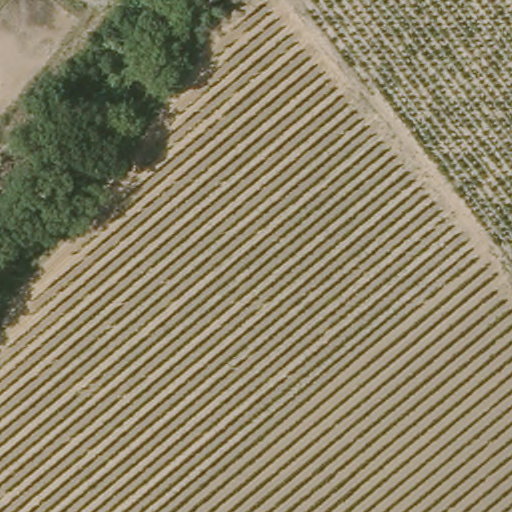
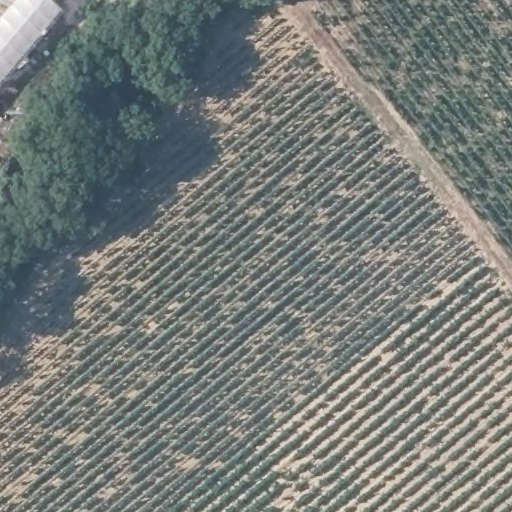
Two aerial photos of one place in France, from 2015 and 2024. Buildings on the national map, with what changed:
new [(0,79),(0,0),(54,0),(61,6),(0,79)]

